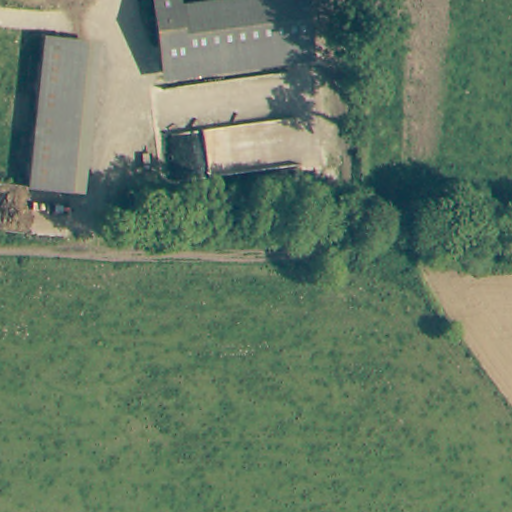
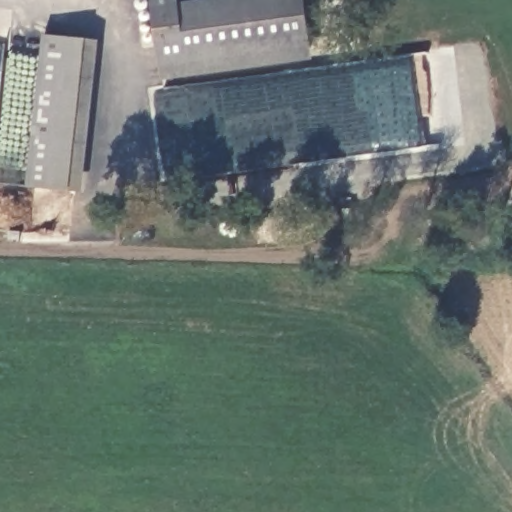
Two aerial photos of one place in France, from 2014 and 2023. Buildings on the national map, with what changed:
unchanged [(146,0),(173,0),(175,15),(148,21),(146,0)]
unchanged [(175,15),(295,1),(302,59),(156,79),(148,21),(175,15)]
unchanged [(30,192),(35,40),(85,44),(76,194),(30,192)]

